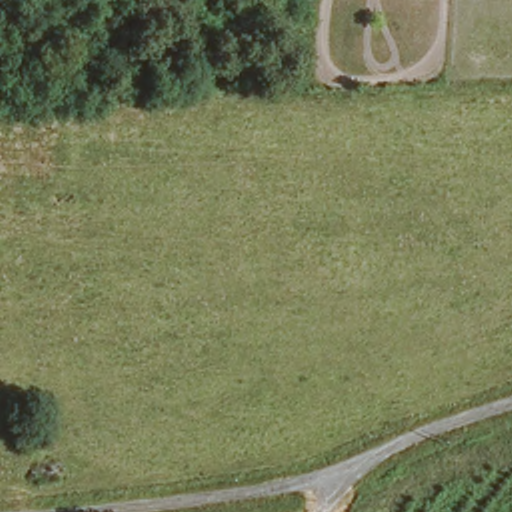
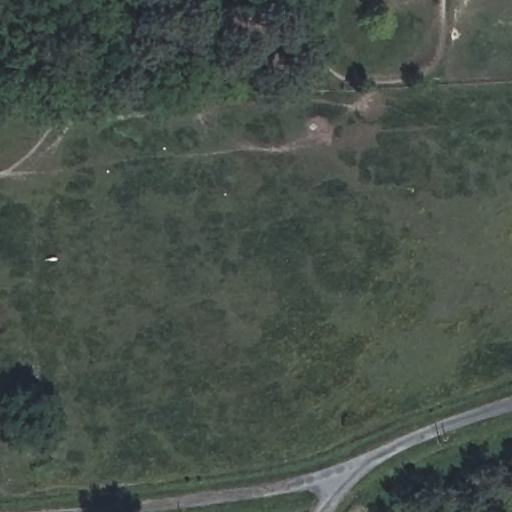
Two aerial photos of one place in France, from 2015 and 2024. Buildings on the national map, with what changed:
[]

